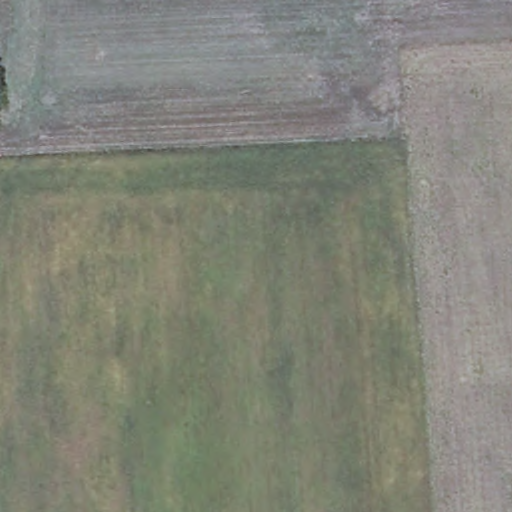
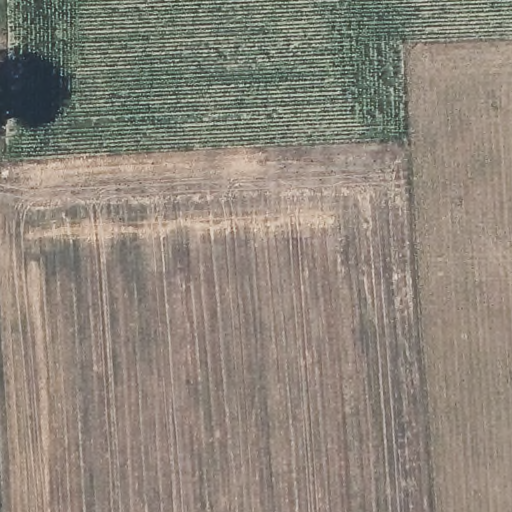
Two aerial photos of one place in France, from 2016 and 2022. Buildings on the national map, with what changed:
[]

